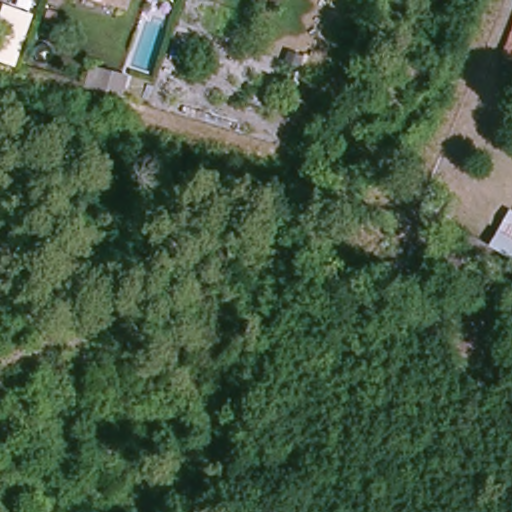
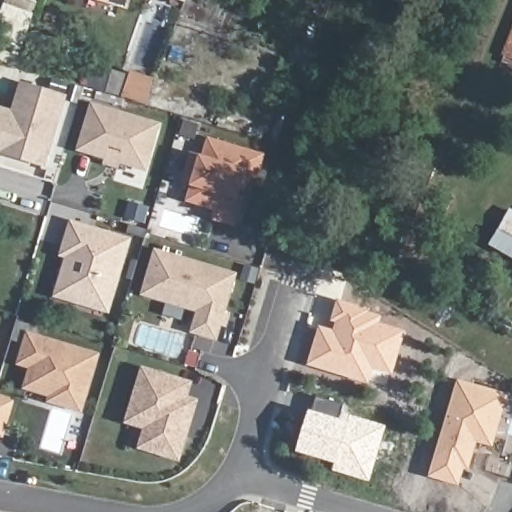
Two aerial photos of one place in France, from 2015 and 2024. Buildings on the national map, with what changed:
unchanged [(105,0),(132,0),(130,7),(105,0)]
unchanged [(512,30),(512,63),(501,59),(512,30)]
unchanged [(86,87),(92,68),(126,77),(121,96),(86,87)]
demolished [(489,110),(504,74),(512,77),(512,91),(511,90),(501,115),(489,110)]
new [(128,99),(136,77),(155,85),(146,106),(128,99)]
new [(0,153),(0,111),(15,115),(23,86),(65,99),(45,166),(0,153)]
new [(146,170),(81,150),(94,107),(159,126),(146,170)]
new [(257,177),(250,175),(245,190),(240,189),(238,197),(242,199),(235,225),(216,219),(219,210),(190,201),(195,185),(185,182),(193,157),(205,160),(211,141),(263,157),(257,177)]
new [(145,225),(126,219),(131,202),(150,207),(145,225)]
unchanged [(490,246),(499,231),(511,210),(512,210),(512,259),(490,246)]
new [(61,282),(69,257),(64,255),(73,224),(130,241),(108,311),(78,302),(57,296),(61,282)]
new [(235,277),(217,338),(195,332),(202,311),(146,295),(158,254),(235,277)]
new [(319,326),(333,330),(335,322),(332,321),(339,300),(371,310),(370,312),(382,316),(380,323),(405,331),(392,375),(374,370),(369,385),(307,366),(319,326)]
new [(28,388),(34,367),(21,364),(30,336),(98,356),(88,390),(81,411),(51,402),(53,396),(28,388)]
new [(191,384),(186,399),(197,402),(190,424),(185,423),(183,430),(186,436),(179,458),(143,447),(153,413),(134,407),(145,370),(191,384)]
new [(506,394),(492,450),(473,443),(460,488),(429,477),(458,380),(506,394)]
new [(0,435),(0,402),(9,405),(0,435)]
new [(298,451),(310,410),(340,418),(342,409),(387,422),(370,482),(333,472),(335,462),(298,451)]

